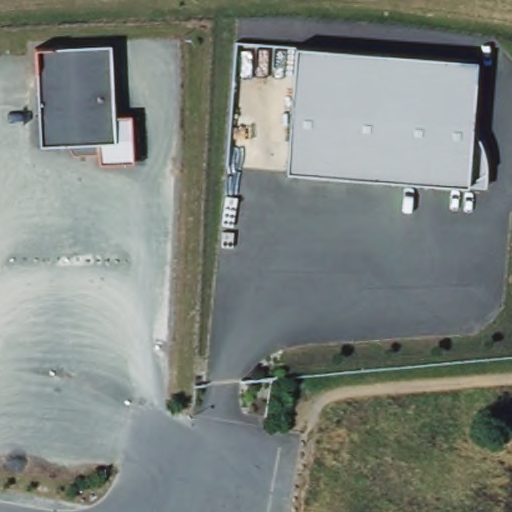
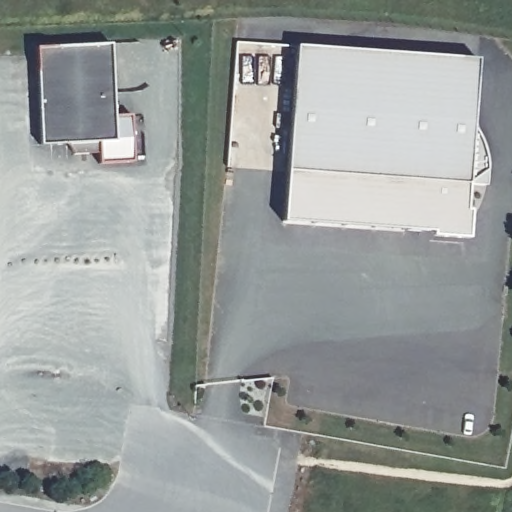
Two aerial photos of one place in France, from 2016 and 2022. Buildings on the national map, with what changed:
unchanged [(475,58),(472,129),(480,145),(484,162),(484,183),(467,184),(287,169),(297,42),(475,58)]
unchanged [(38,148),(33,48),(108,45),(111,145),(38,148)]
new [(465,209),(470,210),(468,240),(429,238),(429,233),(283,221),(287,169),(467,184),(465,209)]

